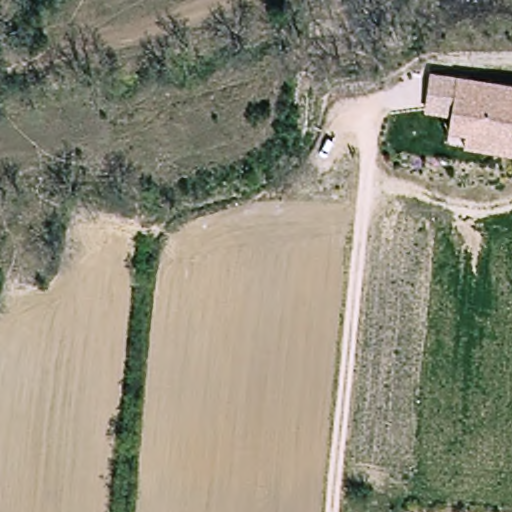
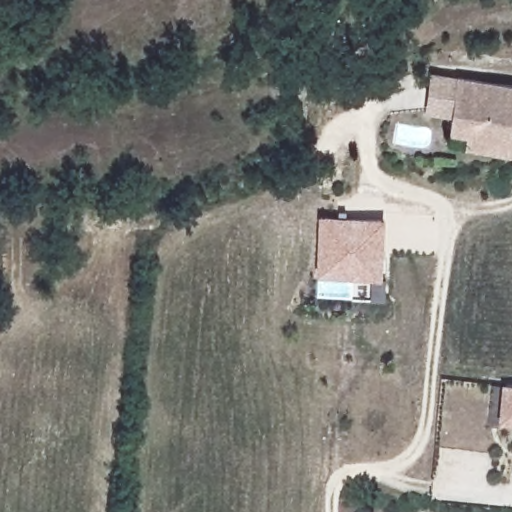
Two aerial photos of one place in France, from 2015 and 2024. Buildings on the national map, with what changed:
unchanged [(470,136),(451,134),(453,118),(428,115),(433,78),(458,81),(512,86),(512,153),(492,151),(468,148),(469,141),(470,136)]
new [(384,218),(382,275),(386,276),(384,298),(370,298),(370,278),(315,276),(318,215),(384,218)]

